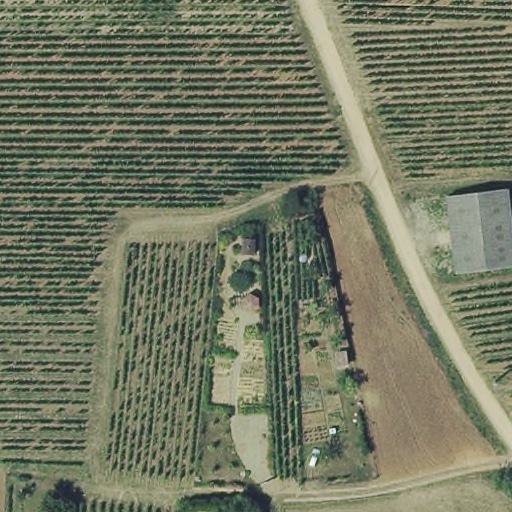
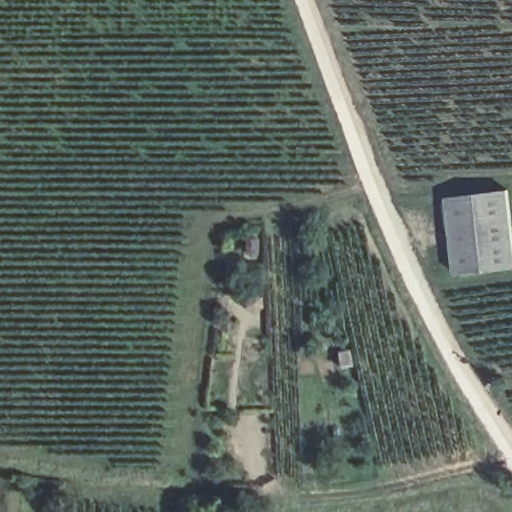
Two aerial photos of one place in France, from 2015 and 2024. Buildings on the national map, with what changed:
unchanged [(505,198),(512,260),(512,273),(454,280),(445,205),(505,198)]
unchanged [(338,354),(348,352),(351,367),(338,369),(338,354)]

